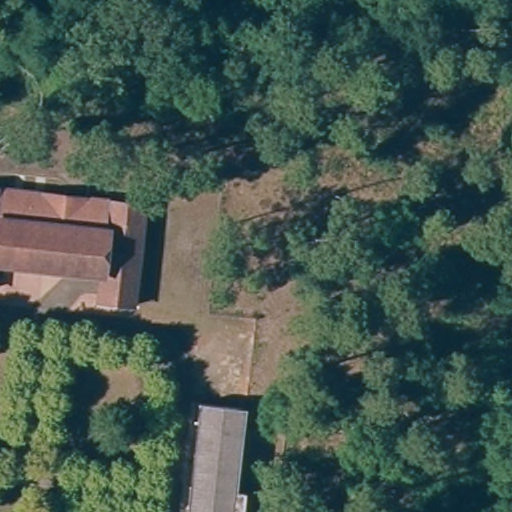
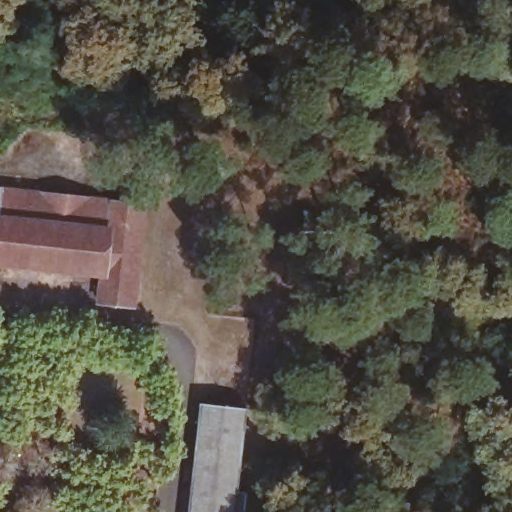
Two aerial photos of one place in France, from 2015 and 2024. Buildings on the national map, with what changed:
unchanged [(135,303),(100,298),(103,271),(0,259),(0,187),(145,204),(135,303)]
unchanged [(238,512),(192,512),(204,399),(249,404),(238,512)]

